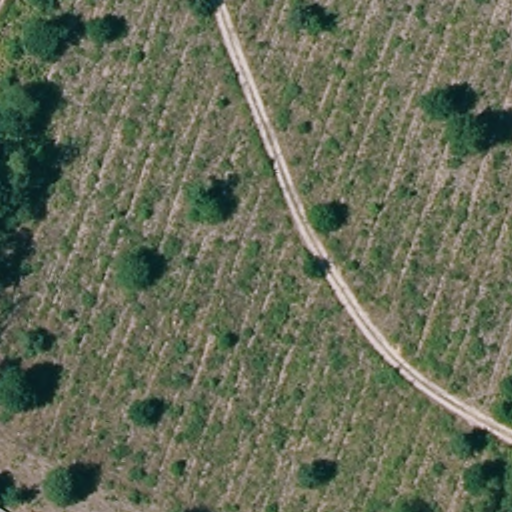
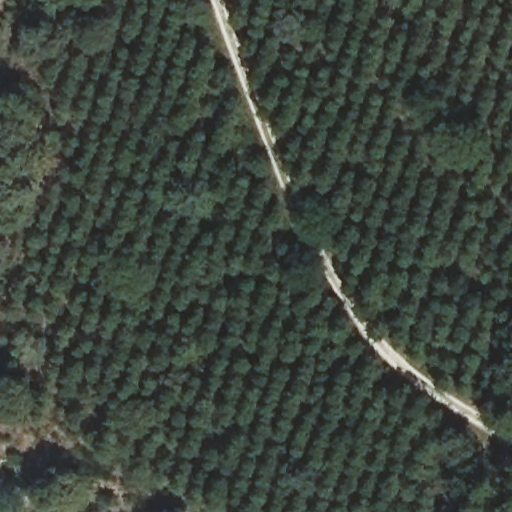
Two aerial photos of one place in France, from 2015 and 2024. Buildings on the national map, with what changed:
[]

